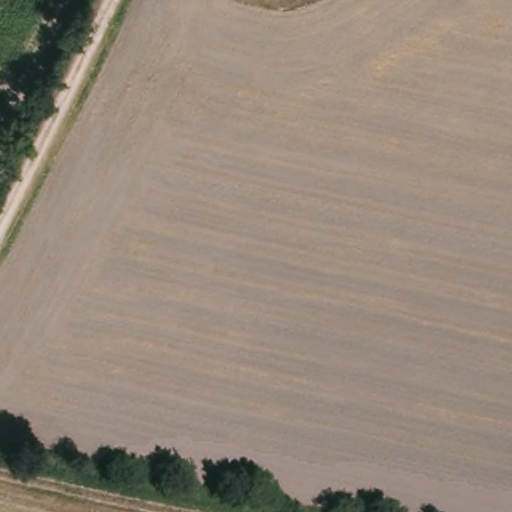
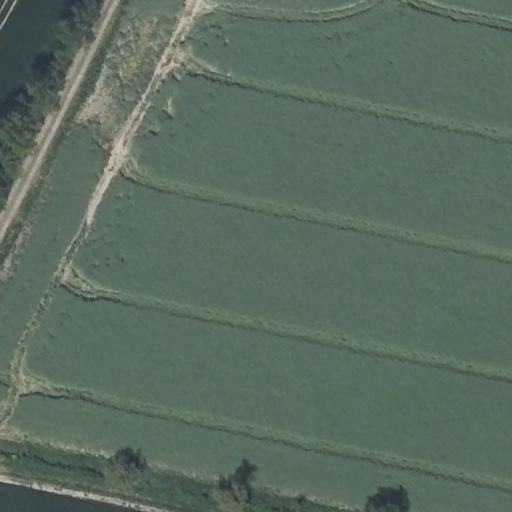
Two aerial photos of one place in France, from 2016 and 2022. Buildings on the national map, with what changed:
[]

